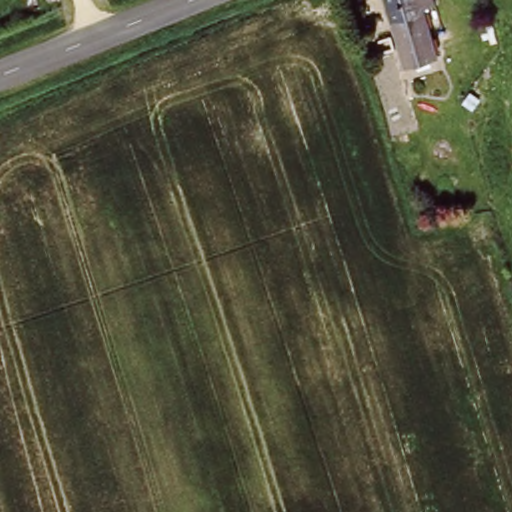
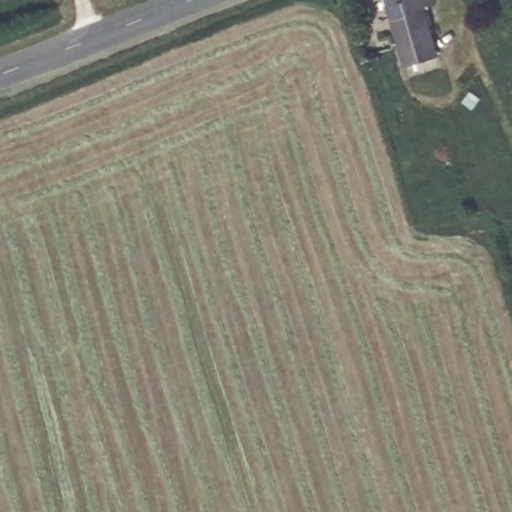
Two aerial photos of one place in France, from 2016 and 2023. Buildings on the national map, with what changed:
unchanged [(407,66),(385,0),(435,0),(436,4),(427,6),(443,53),(407,66)]

